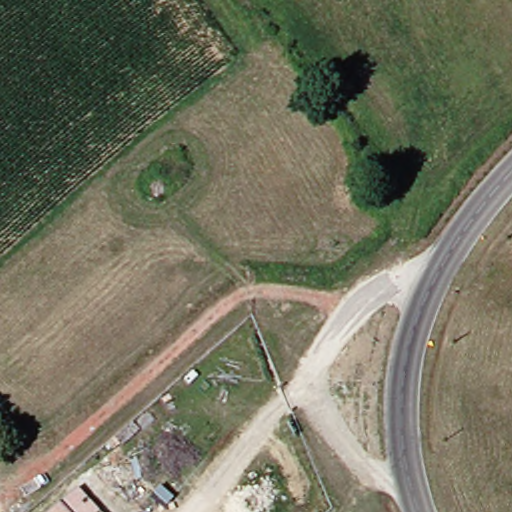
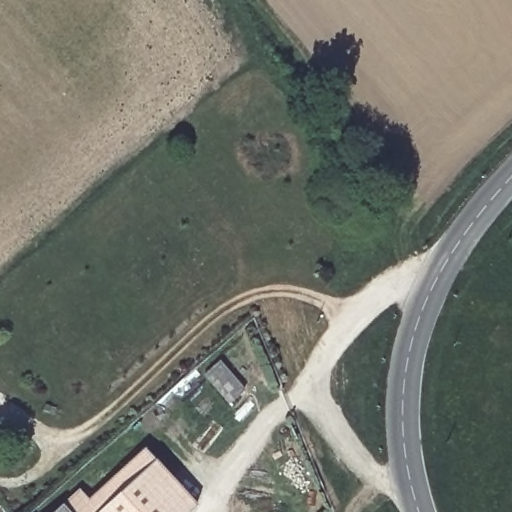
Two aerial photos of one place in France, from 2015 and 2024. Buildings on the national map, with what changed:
new [(246,391),(230,405),(204,375),(221,361),(246,391)]
new [(79,490),(88,500),(144,449),(155,461),(195,506),(189,512),(68,512),(61,504),(79,490)]
unchanged [(61,504),(68,512),(53,512),(61,504)]

